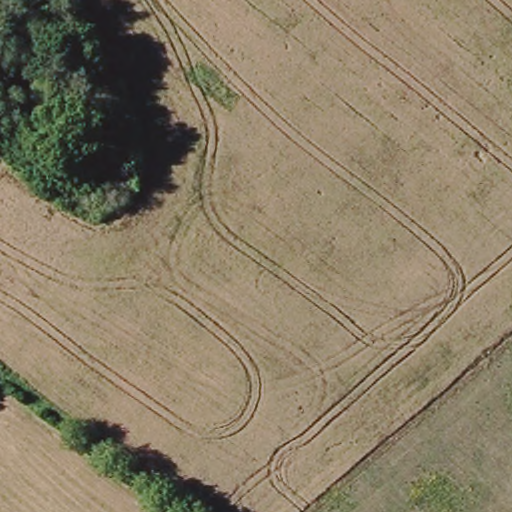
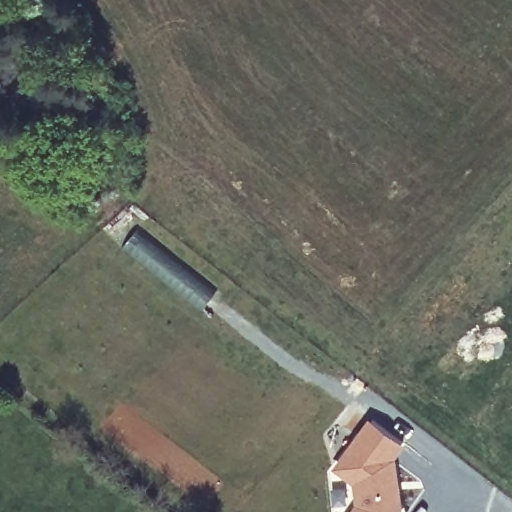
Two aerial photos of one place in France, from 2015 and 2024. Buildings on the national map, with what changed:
new [(130,245),(137,236),(214,295),(207,304),(181,284),(177,289),(152,269),(149,261),(130,245)]
new [(355,503),(352,502),(350,481),(333,466),(369,417),(406,444),(398,459),(404,495),(404,512),(348,512),(355,503)]

